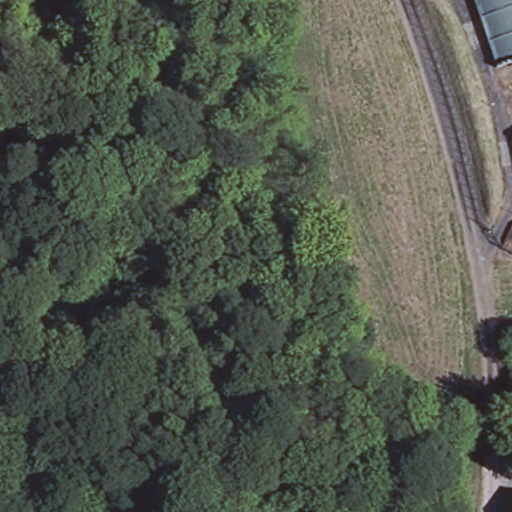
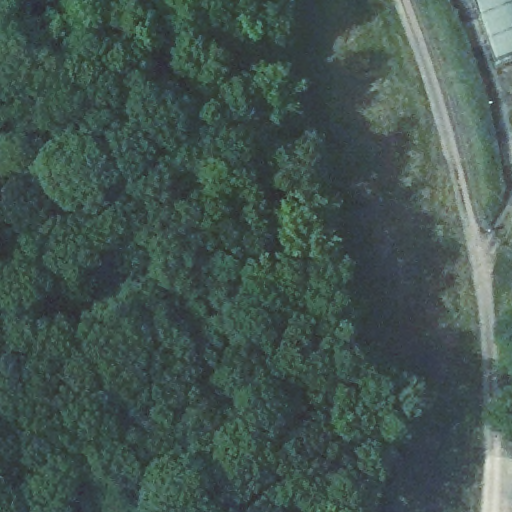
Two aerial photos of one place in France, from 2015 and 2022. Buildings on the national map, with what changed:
unchanged [(512,0),(512,55),(498,61),(476,0),(512,0)]

